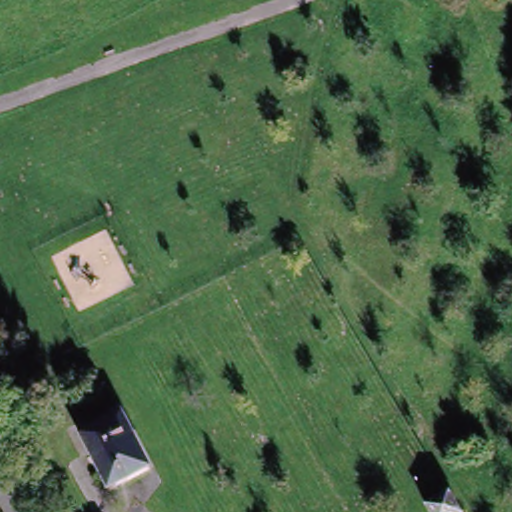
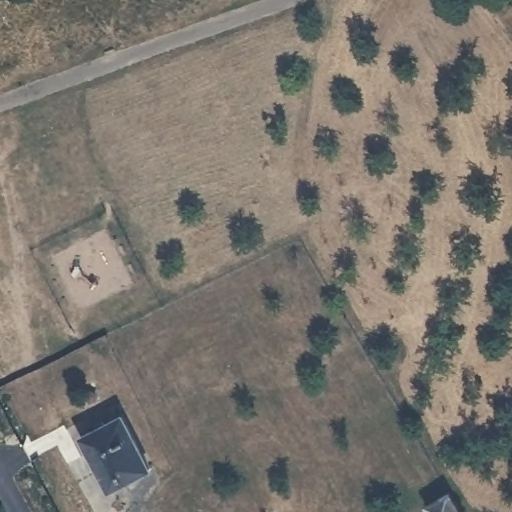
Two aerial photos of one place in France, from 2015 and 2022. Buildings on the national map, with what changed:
unchanged [(146,470),(107,491),(78,439),(119,417),(146,470)]
unchanged [(427,512),(423,507),(447,493),(458,512),(427,512)]

